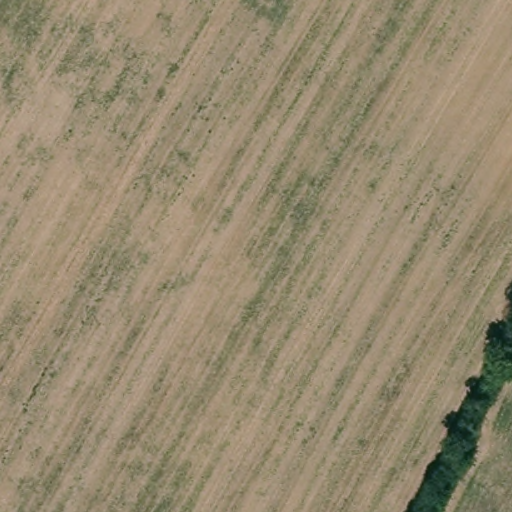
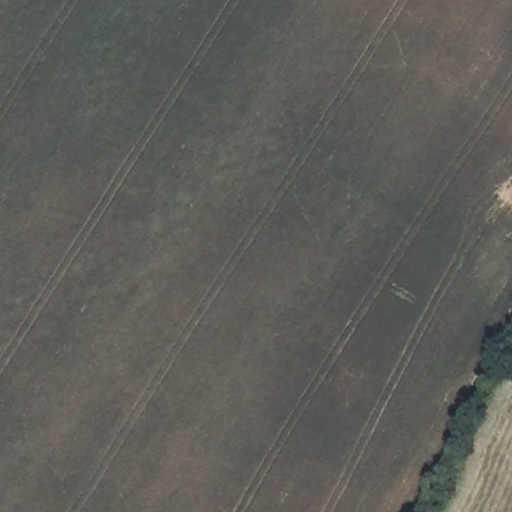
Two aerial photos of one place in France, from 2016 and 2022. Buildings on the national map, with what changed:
[]

